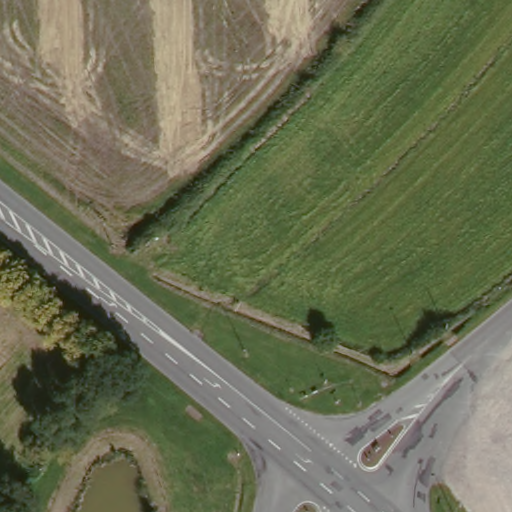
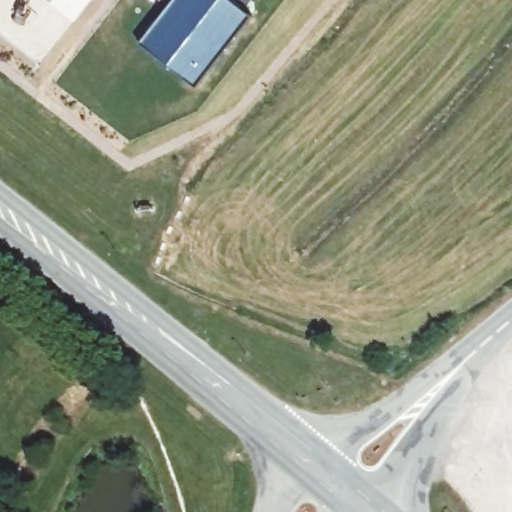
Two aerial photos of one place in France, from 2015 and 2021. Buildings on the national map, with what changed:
new [(230,0),(252,17),(197,86),(143,46),(176,0),(230,0)]

